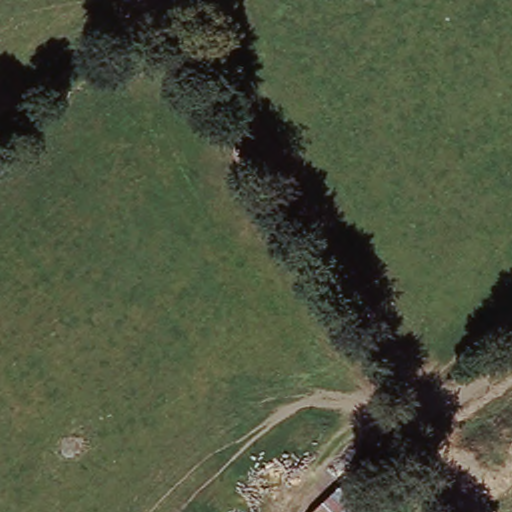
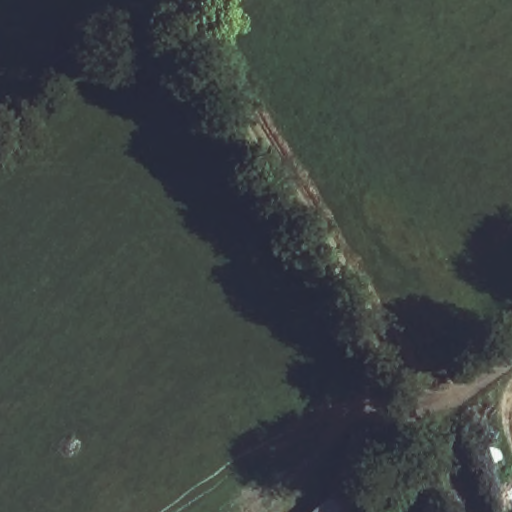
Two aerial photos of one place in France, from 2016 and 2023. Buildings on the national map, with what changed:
unchanged [(360,512),(323,512),(345,486),(365,507),(360,512)]

